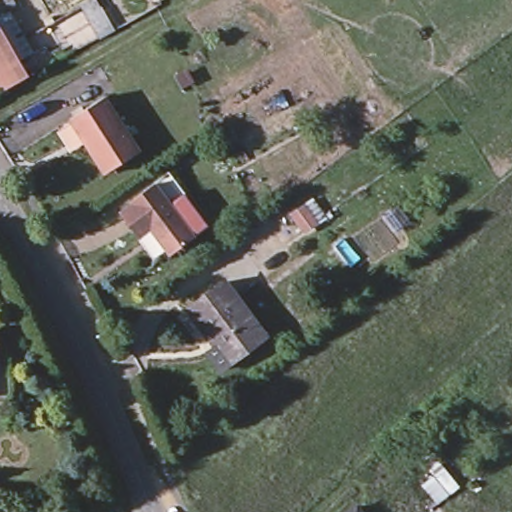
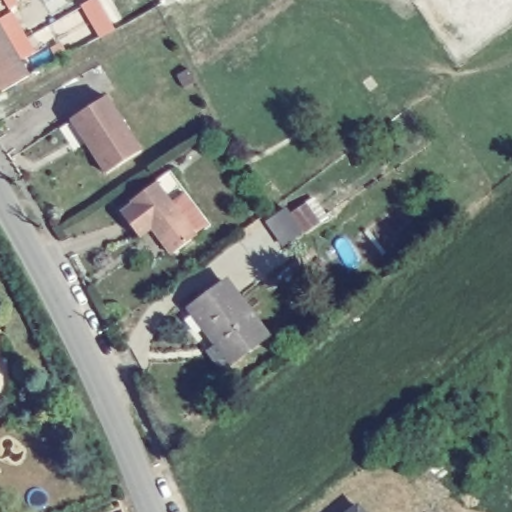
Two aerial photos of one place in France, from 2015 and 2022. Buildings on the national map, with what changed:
unchanged [(95,0),(112,28),(98,36),(80,3),(86,0),(95,0)]
unchanged [(5,17),(27,56),(18,61),(27,76),(0,93),(0,20),(5,17)]
unchanged [(113,94),(149,147),(113,172),(77,118),(113,94)]
unchanged [(185,243),(174,229),(167,220),(153,230),(135,203),(147,194),(145,191),(170,172),(198,210),(210,225),(185,243)]
unchanged [(315,202),(327,220),(309,231),(297,215),(315,202)]
unchanged [(224,281),(265,337),(234,361),(212,332),(210,333),(190,307),(224,281)]
unchanged [(358,506),(363,512),(351,512),(358,506)]

